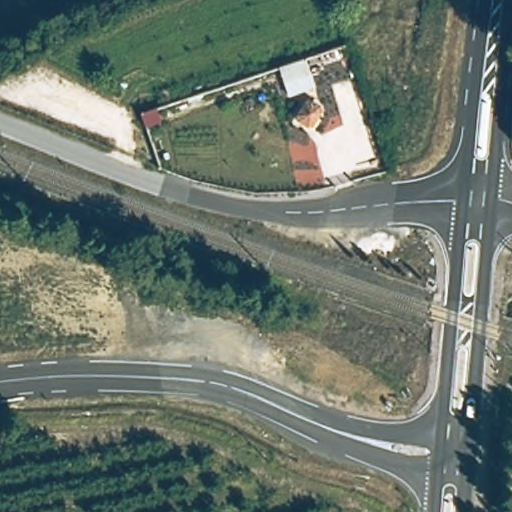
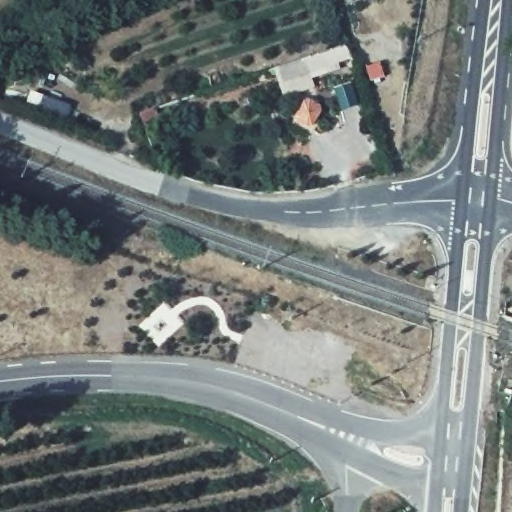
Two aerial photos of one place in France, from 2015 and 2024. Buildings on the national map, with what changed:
unchanged [(305,106),(322,114),(311,134),(295,123),(305,106)]

